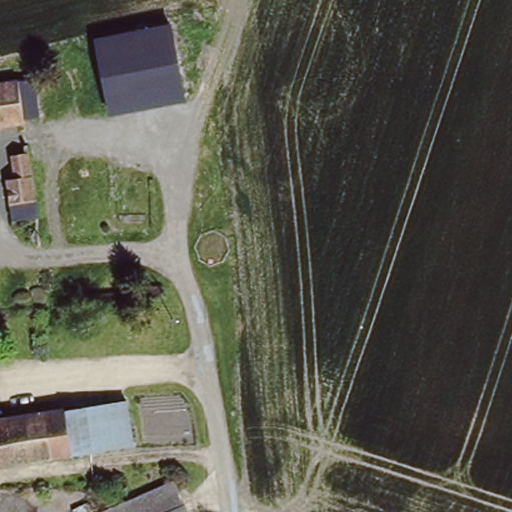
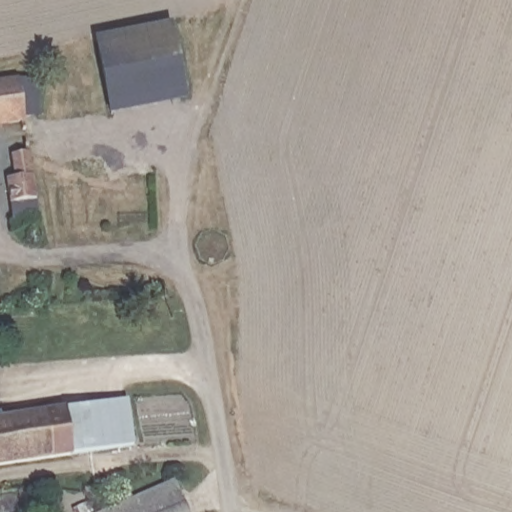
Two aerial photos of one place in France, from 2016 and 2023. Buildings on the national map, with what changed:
unchanged [(181,97),(106,112),(92,42),(166,27),(181,97)]
unchanged [(33,76),(40,112),(20,116),(20,118),(0,121),(0,77),(13,75),(14,79),(33,76)]
unchanged [(39,217),(12,221),(6,179),(20,177),(17,155),(30,153),(39,217)]
unchanged [(64,410),(127,401),(135,446),(72,455),(64,410)]
unchanged [(72,455),(0,466),(0,419),(64,410),(72,455)]
unchanged [(183,512),(92,512),(168,479),(183,512)]

